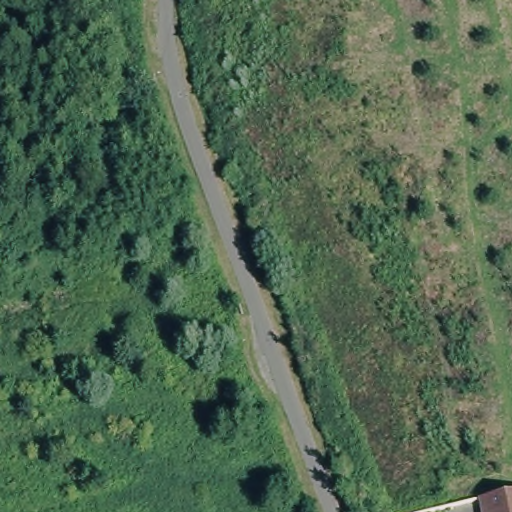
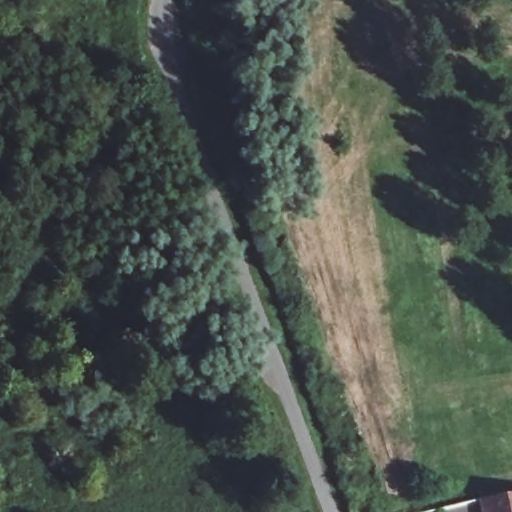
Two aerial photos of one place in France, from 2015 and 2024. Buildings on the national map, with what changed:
unchanged [(489,500),(503,498),(512,497),(512,512),(482,512),(480,502),(489,500)]

